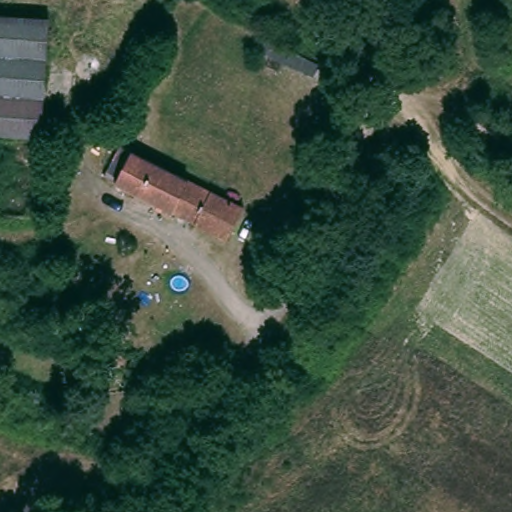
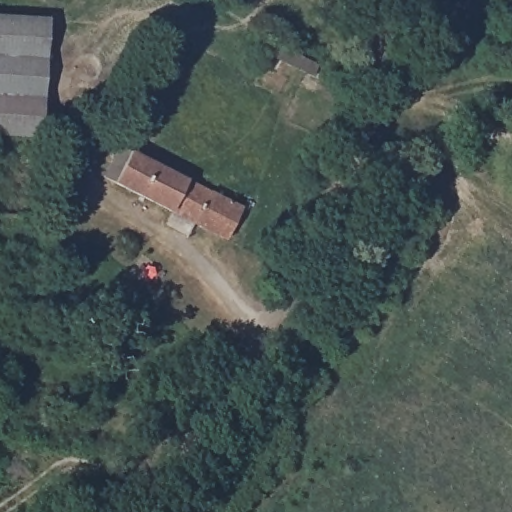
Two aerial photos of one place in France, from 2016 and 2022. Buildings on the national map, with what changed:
unchanged [(43,139),(0,136),(0,15),(48,17),(43,139)]
unchanged [(263,41),(326,79),(317,96),(253,59),(263,41)]
unchanged [(140,151),(234,212),(214,243),(119,184),(140,151)]

